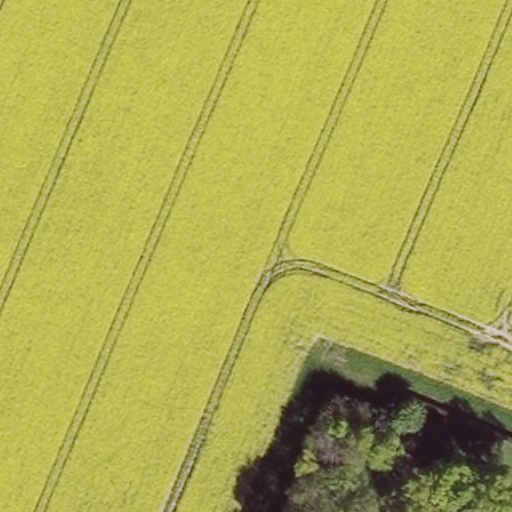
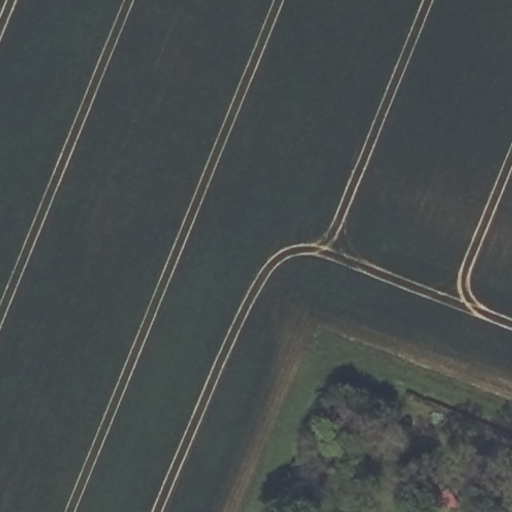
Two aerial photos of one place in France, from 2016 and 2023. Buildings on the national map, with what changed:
unchanged [(432,471),(451,504),(440,510),(421,477),(432,471)]

